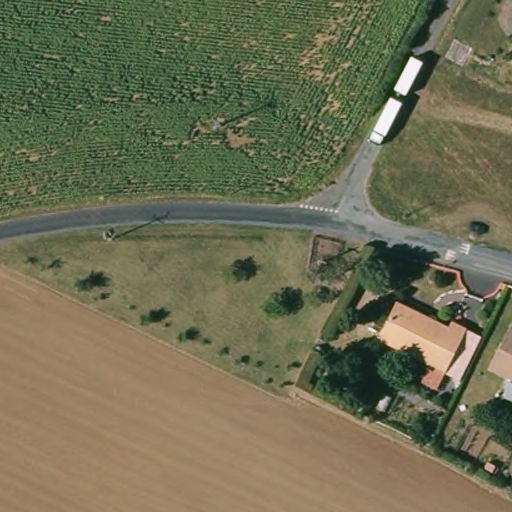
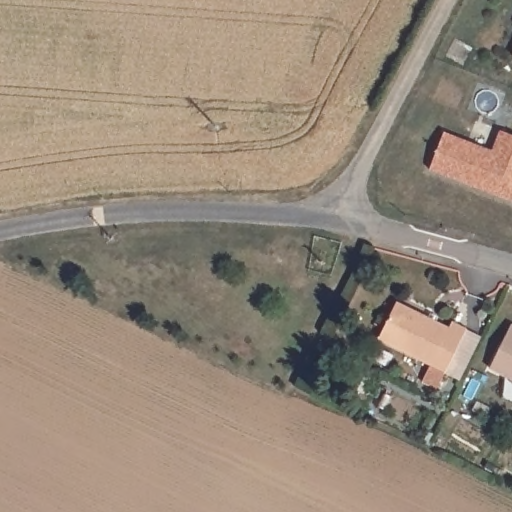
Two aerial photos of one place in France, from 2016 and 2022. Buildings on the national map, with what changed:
new [(443,133),(491,151),(498,131),(512,136),(512,202),(428,170),(443,133)]
unchanged [(461,385),(445,378),(438,393),(423,386),(431,370),(377,344),(396,307),(448,332),(451,327),(466,334),(481,341),(461,385)]
unchanged [(502,348),(511,330),(512,331),(512,386),(488,374),(502,348)]

